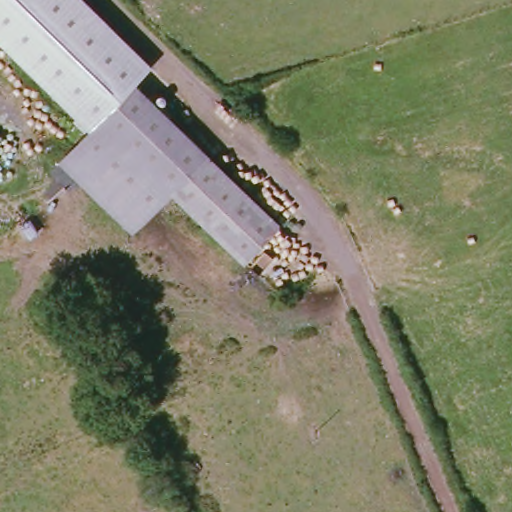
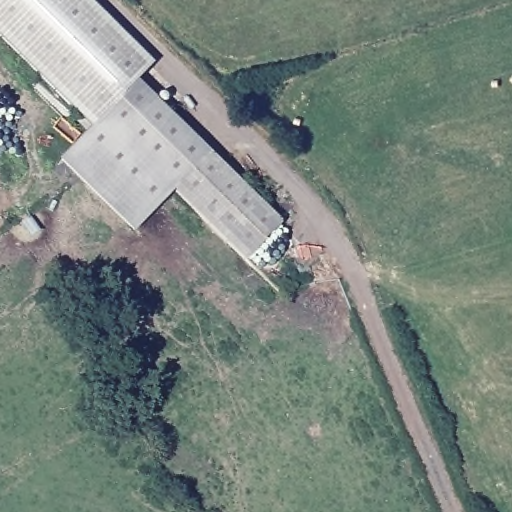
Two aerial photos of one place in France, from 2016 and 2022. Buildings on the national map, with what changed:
unchanged [(91,125),(57,92),(0,38),(0,0),(83,0),(143,58),(146,60),(151,65),(132,84),(277,223),(241,258),(170,189),(132,227),(60,157),(91,125)]

